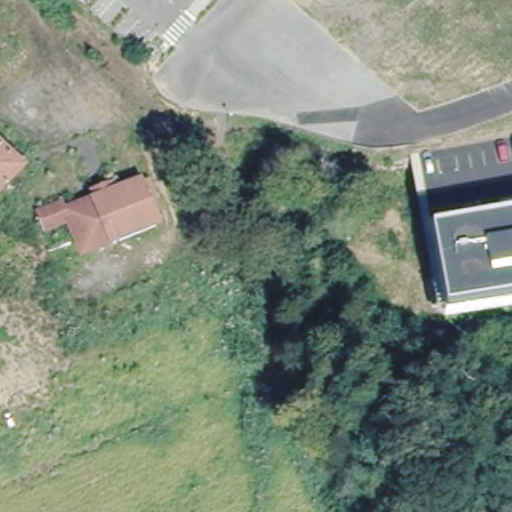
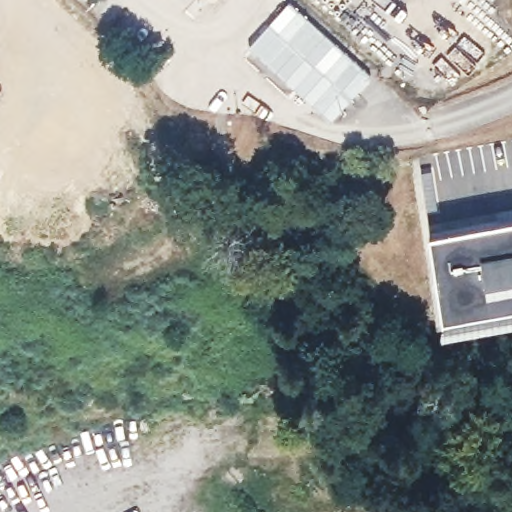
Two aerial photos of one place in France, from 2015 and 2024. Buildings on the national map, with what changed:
new [(289,2),(324,31),(372,76),(332,119),(282,76),(250,46),(289,2)]
demolished [(17,163),(8,174),(16,183),(0,201),(0,147),(17,163)]
demolished [(59,212),(64,222),(96,206),(117,195),(147,181),(157,205),(148,210),(158,229),(85,263),(66,226),(43,237),(37,224),(59,212)]
unchanged [(512,307),(443,318),(430,229),(512,215),(512,307)]

